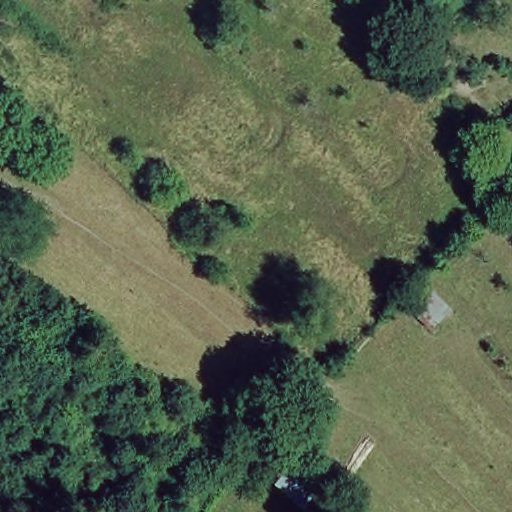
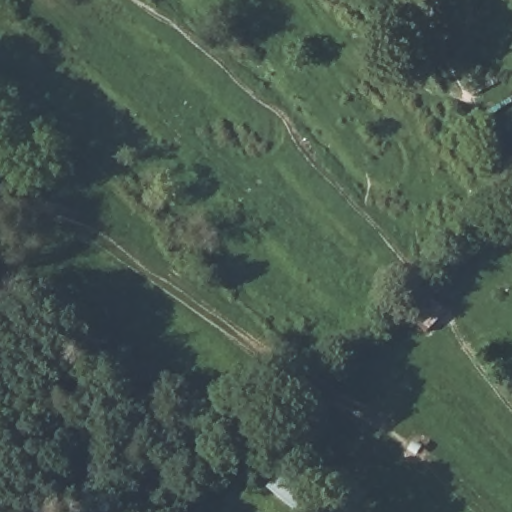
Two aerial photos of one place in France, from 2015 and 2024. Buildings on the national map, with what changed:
unchanged [(313,490),(296,512),(293,512),(266,490),(284,466),(313,490)]

